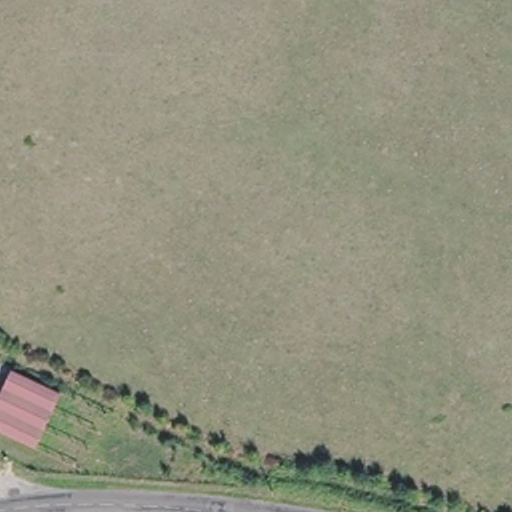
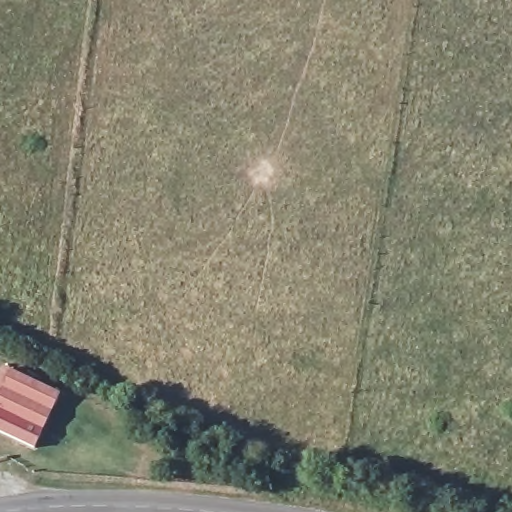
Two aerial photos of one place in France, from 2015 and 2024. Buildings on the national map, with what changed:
unchanged [(33,449),(0,431),(0,398),(14,369),(60,393),(33,449)]

